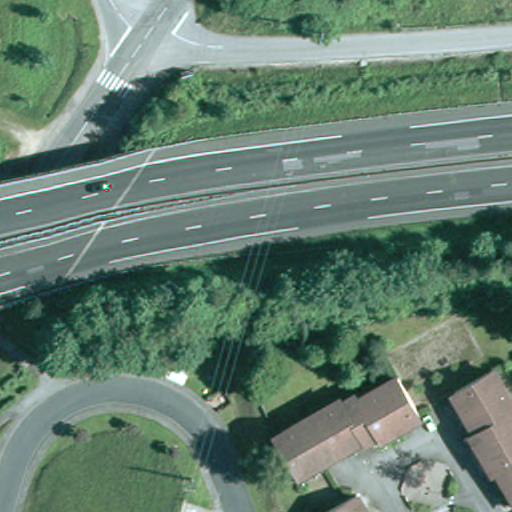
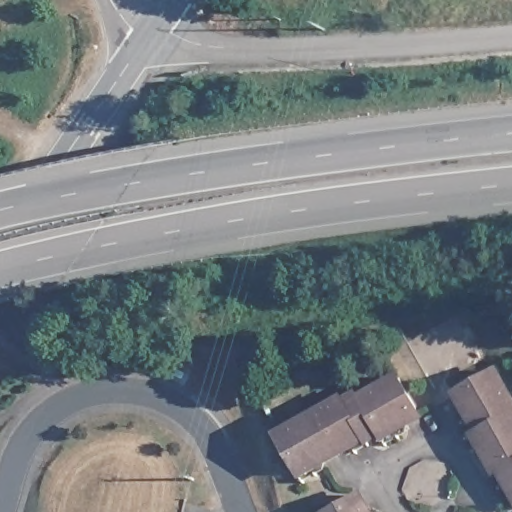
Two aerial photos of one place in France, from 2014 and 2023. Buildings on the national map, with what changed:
unchanged [(512,402),(512,492),(500,471),(495,473),(474,434),(478,432),(456,392),(495,371),(512,402)]
unchanged [(337,400),(340,403),(352,396),(354,399),(394,377),(415,416),(377,437),(375,434),(362,441),(360,438),(295,475),(273,436),(337,400)]
unchanged [(360,512),(334,512),(353,501),(360,512)]

